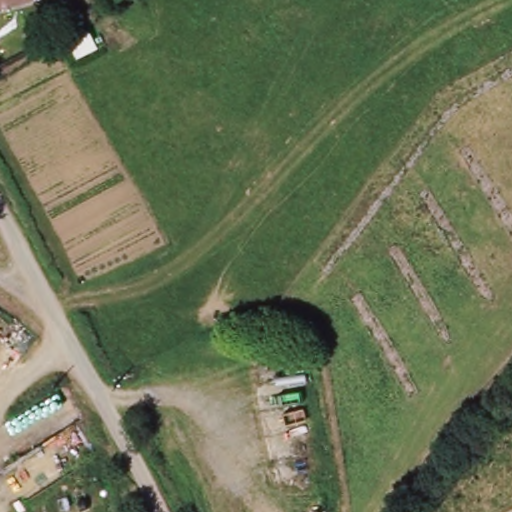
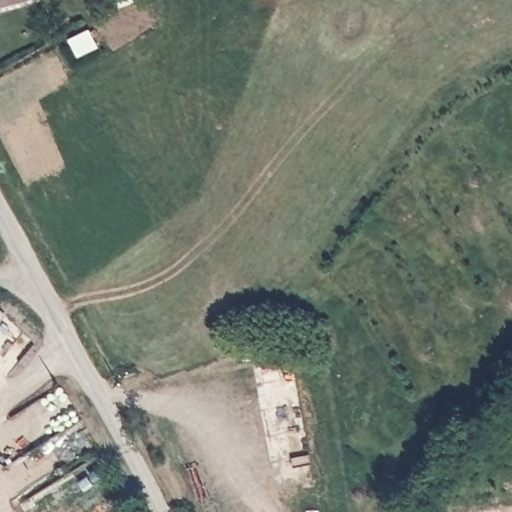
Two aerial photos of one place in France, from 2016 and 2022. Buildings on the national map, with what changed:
unchanged [(0,9),(0,0),(27,0),(28,4),(0,9)]

